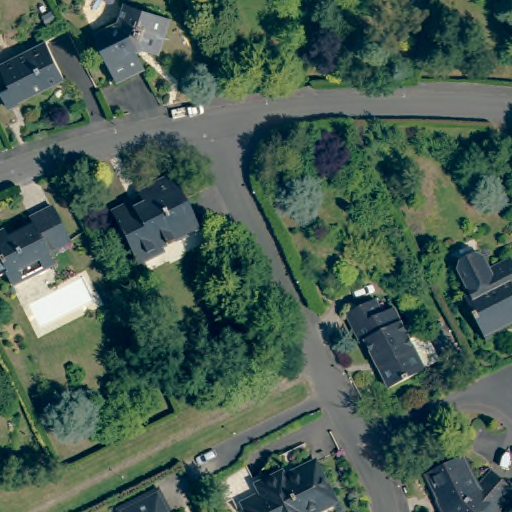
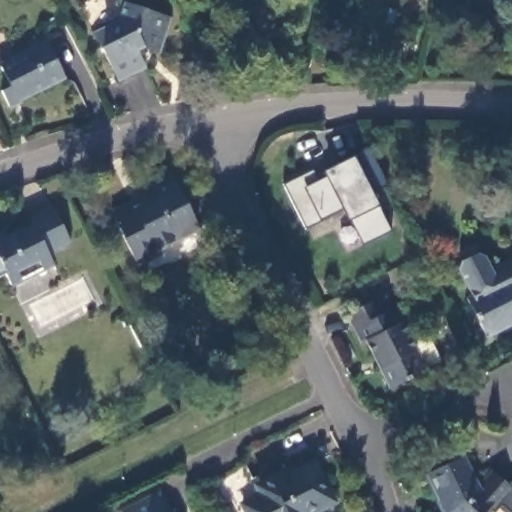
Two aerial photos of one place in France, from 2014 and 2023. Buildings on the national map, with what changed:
unchanged [(136,50),(144,69),(119,80),(95,34),(117,22),(126,4),(165,16),(170,19),(159,51),(153,49),(144,45),(136,50)]
unchanged [(66,74),(20,98),(21,99),(10,105),(1,86),(10,81),(1,62),(46,39),(66,74)]
new [(283,186),(312,172),(317,183),(327,179),(323,173),(353,158),(367,149),(386,188),(372,195),(377,208),(390,232),(362,246),(347,222),(341,209),(320,221),(303,230),(283,186)]
unchanged [(154,249),(136,259),(112,209),(140,194),(137,189),(170,174),(182,200),(195,223),(190,225),(152,245),(154,249)]
unchanged [(14,231),(40,218),(37,214),(61,203),(79,238),(56,249),(60,256),(40,265),(42,270),(21,281),(15,269),(0,277),(0,234),(12,228),(14,231)]
unchanged [(490,336),(486,338),(465,295),(470,293),(464,280),(463,281),(462,280),(456,266),(457,260),(475,252),(478,253),(482,255),(489,267),(511,256),(511,257),(512,259),(512,323),(489,334),(490,336)]
unchanged [(429,366),(430,367),(393,385),(370,338),(365,340),(351,312),(379,297),(386,309),(398,304),(413,333),(428,327),(444,358),(429,366)]
unchanged [(479,512),(444,512),(449,507),(430,467),(467,448),(482,477),(495,463),(512,478),(512,500),(502,512),(496,506),(490,501),(479,512)]
unchanged [(333,504),(317,512),(246,512),(242,504),(260,496),(256,486),(281,474),(282,477),(294,471),(295,474),(312,464),(333,504)]
unchanged [(156,493),(165,512),(118,512),(156,493)]

